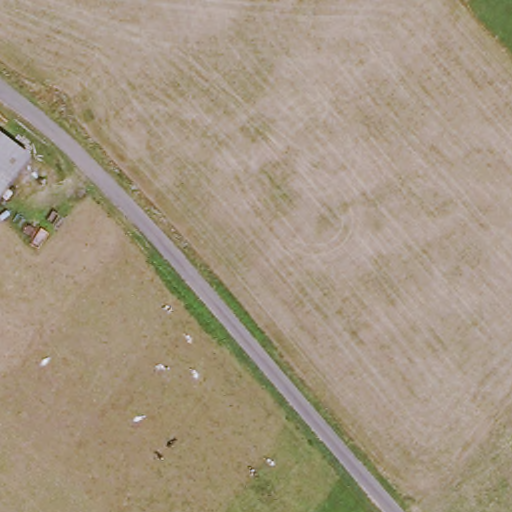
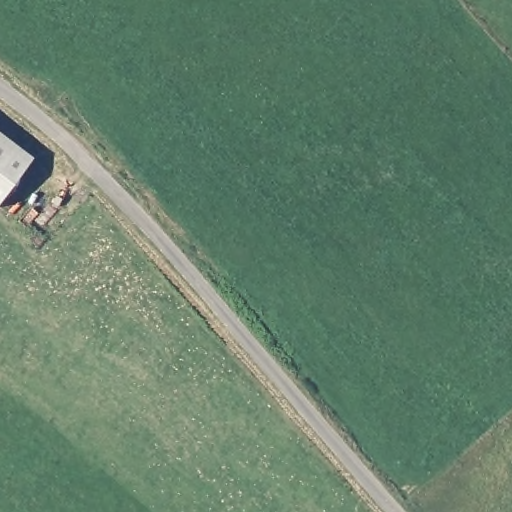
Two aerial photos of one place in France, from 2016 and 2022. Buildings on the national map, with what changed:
unchanged [(27,157),(0,191),(0,136),(27,157)]

